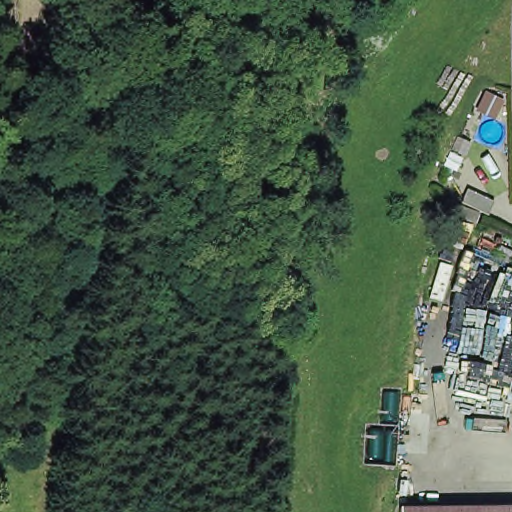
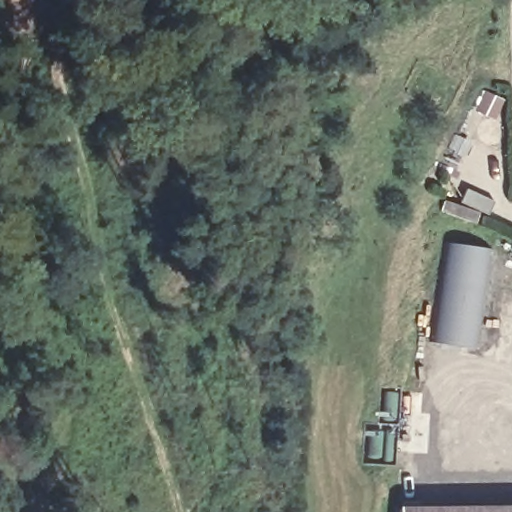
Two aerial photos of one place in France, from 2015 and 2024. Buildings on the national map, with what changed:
new [(505,100),(496,122),(476,113),(485,91),(505,100)]
new [(492,247),(479,350),(429,343),(445,242),(492,247)]
unchanged [(512,502),(512,512),(403,512),(403,504),(512,502)]

